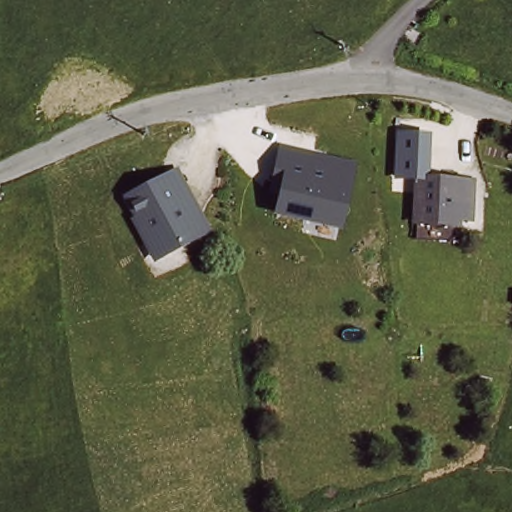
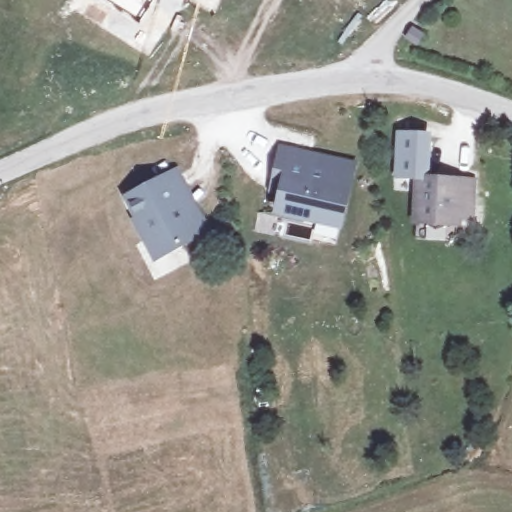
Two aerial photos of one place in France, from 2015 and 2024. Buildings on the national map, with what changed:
new [(104,0),(154,0),(138,22),(104,0)]
unchanged [(415,185),(412,179),(396,180),(398,132),(435,134),(432,184),(415,185)]
unchanged [(352,165),(343,211),(321,207),(317,222),(278,215),(286,183),(276,180),(283,150),(352,165)]
unchanged [(142,219),(138,221),(126,201),(163,180),(174,173),(207,229),(196,235),(165,255),(142,219)]
unchanged [(415,185),(432,184),(471,180),(472,219),(458,220),(459,227),(416,229),(415,185)]

